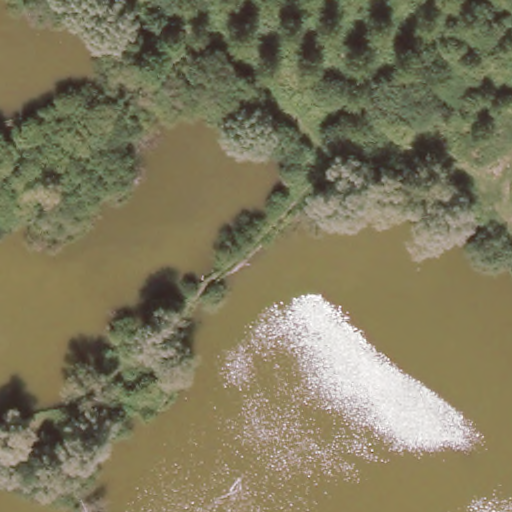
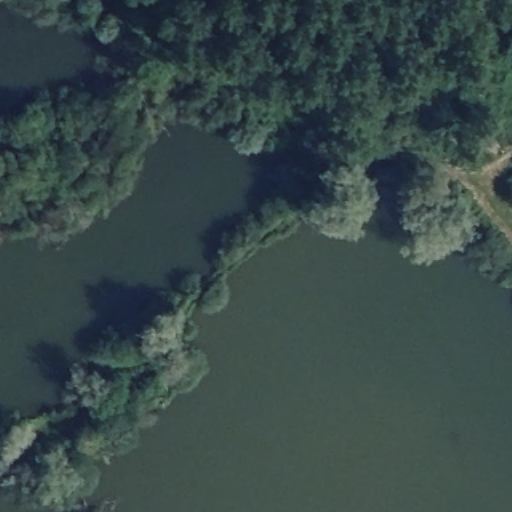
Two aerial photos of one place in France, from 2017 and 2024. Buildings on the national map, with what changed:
unchanged [(171,373),(159,382),(151,367),(159,358),(171,373)]

